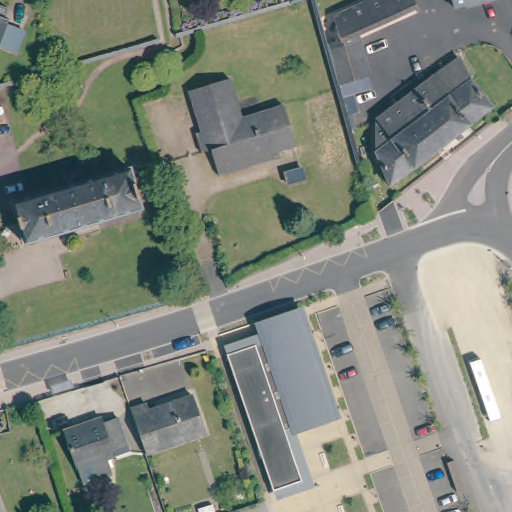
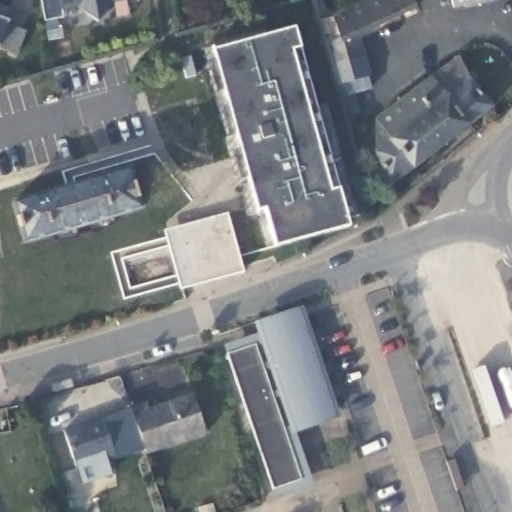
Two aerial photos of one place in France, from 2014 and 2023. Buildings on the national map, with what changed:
unchanged [(128,1),(111,4),(97,22),(76,8),(60,11),(59,0),(128,0),(128,1)]
unchanged [(346,111),(341,92),(329,44),(342,37),(332,15),(365,0),(411,0),(414,6),(356,34),(368,85),(352,89),(357,109),(346,111)]
unchanged [(463,2),(450,6),(448,0),(482,0),(463,5),(463,2)]
unchanged [(0,43),(0,2),(11,6),(7,16),(11,17),(9,22),(28,30),(20,51),(0,43)]
new [(279,246),(277,237),(269,209),(261,211),(222,68),(215,70),(209,49),(217,47),(216,46),(217,46),(218,49),(300,26),(306,47),(297,50),(327,157),(334,155),(337,165),(330,167),(336,190),(343,187),(352,216),(354,226),(279,246)]
new [(343,187),(336,190),(330,167),(337,165),(334,155),(327,157),(297,50),(306,47),(343,187)]
unchanged [(385,119),(467,57),(478,83),(499,110),(398,187),(384,151),(385,119)]
demolished [(200,150),(194,128),(202,125),(192,87),(233,75),(244,116),(284,104),(295,145),(217,167),(211,146),(200,150)]
demolished [(332,91),(352,161),(322,170),(303,99),(332,91)]
unchanged [(16,202),(134,167),(145,207),(27,244),(16,202)]
new [(232,212),(234,217),(183,231),(197,280),(246,267),(247,272),(186,288),(169,229),(232,212)]
new [(234,217),(232,212),(233,212),(249,271),(247,272),(246,267),(197,280),(183,231),(234,217)]
unchanged [(287,435),(304,484),(277,494),(227,357),(265,344),(262,336),(303,321),(337,417),(287,435)]
unchanged [(144,453),(127,407),(143,401),(146,408),(189,392),(203,431),(144,453)]
unchanged [(84,481),(78,465),(65,429),(102,416),(105,421),(119,416),(129,442),(115,447),(116,451),(106,455),(112,470),(84,481)]
unchanged [(462,490),(452,493),(442,465),(452,461),(462,490)]

